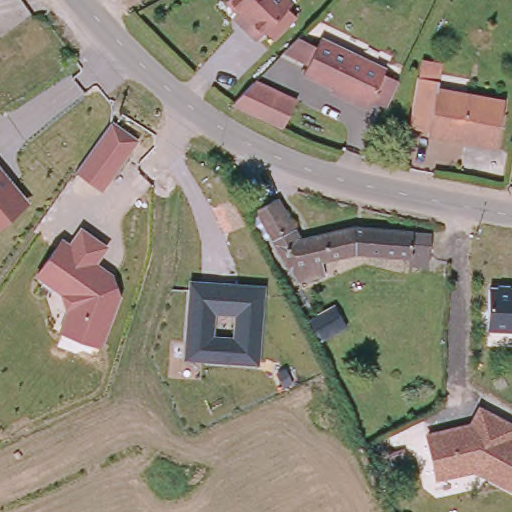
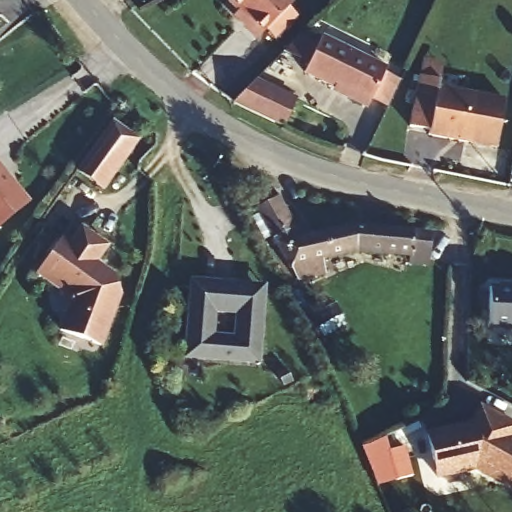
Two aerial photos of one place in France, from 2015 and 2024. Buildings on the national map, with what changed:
unchanged [(254,37),(239,21),(246,14),(234,0),(289,0),(291,3),(254,37)]
unchanged [(396,74),(380,107),(361,98),(359,102),(335,90),(338,85),(300,65),(301,62),(280,49),(295,36),(305,26),(317,33),(320,28),(381,60),(379,64),(396,73),(396,74)]
unchanged [(432,126),(408,121),(420,70),(424,52),(445,56),(442,75),(441,80),(432,126)]
unchanged [(235,97),(256,78),(296,97),(284,125),(232,101),(235,97)]
unchanged [(507,91),(498,142),(432,131),(432,126),(441,80),(507,91)]
unchanged [(139,140),(102,192),(75,172),(112,121),(139,140)]
unchanged [(12,185),(11,186),(28,213),(0,232),(0,163),(12,185)]
unchanged [(405,252),(353,245),(323,254),(325,265),(291,272),(253,201),(273,191),(295,234),(351,224),(416,232),(426,238),(421,263),(415,262),(404,262),(405,252)]
unchanged [(109,246),(97,263),(114,275),(122,297),(102,348),(58,331),(67,310),(61,293),(35,276),(61,237),(69,242),(81,226),(109,246)]
unchanged [(265,284),(259,365),(183,359),(189,279),(265,284)]
unchanged [(488,287),(497,287),(500,284),(510,284),(512,287),(512,331),(487,330),(488,287)]
unchanged [(512,423),(512,491),(474,472),(435,481),(425,433),(470,423),(480,405),(512,423)]
new [(405,447),(413,476),(375,487),(362,445),(386,438),(388,448),(405,447)]

